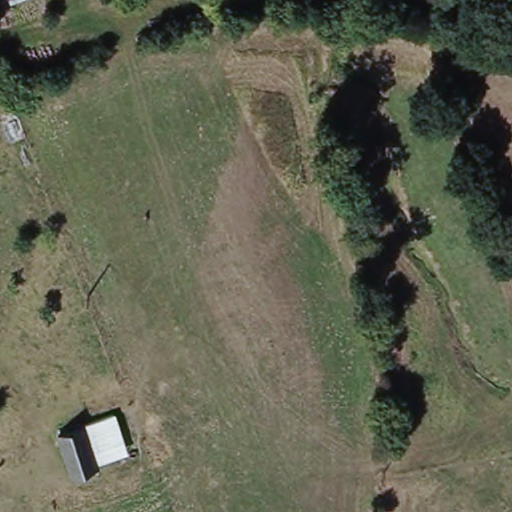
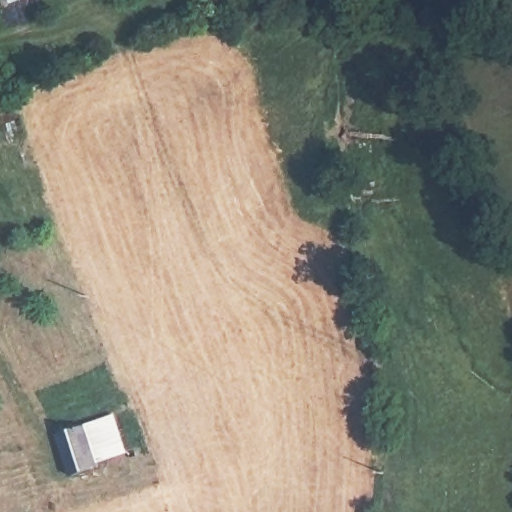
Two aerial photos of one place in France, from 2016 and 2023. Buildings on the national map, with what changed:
unchanged [(106,420),(121,457),(92,467),(76,430),(106,420)]
unchanged [(76,430),(92,467),(93,471),(71,479),(54,438),(76,430)]

